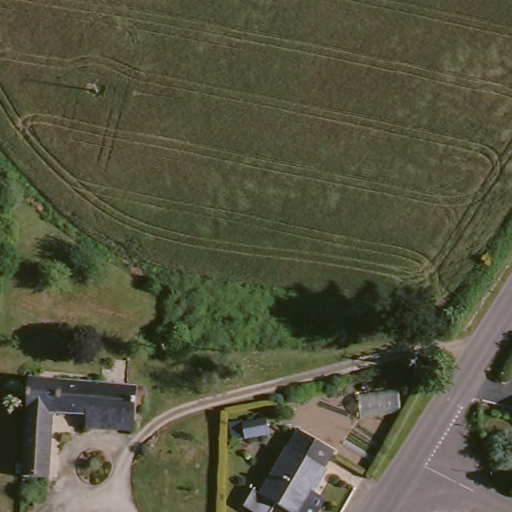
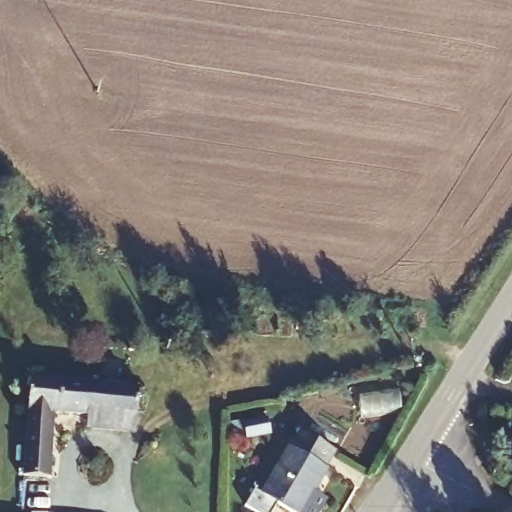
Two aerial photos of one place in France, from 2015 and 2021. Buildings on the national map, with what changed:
unchanged [(43,473),(18,470),(26,380),(119,387),(138,390),(136,408),(136,420),(134,432),(89,428),(90,415),(48,411),(43,473)]
unchanged [(236,420),(242,419),(242,421),(266,420),(266,435),(236,437),(231,437),(230,420),(236,420)]
unchanged [(316,503),(329,512),(279,512),(276,510),(275,512),(250,512),(248,510),(261,491),(264,493),(306,433),(344,460),(316,503)]

